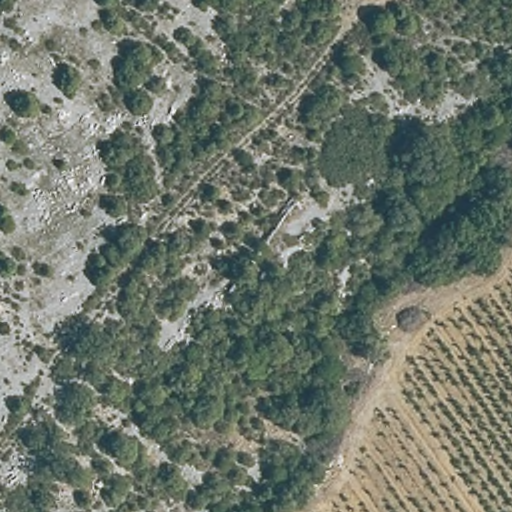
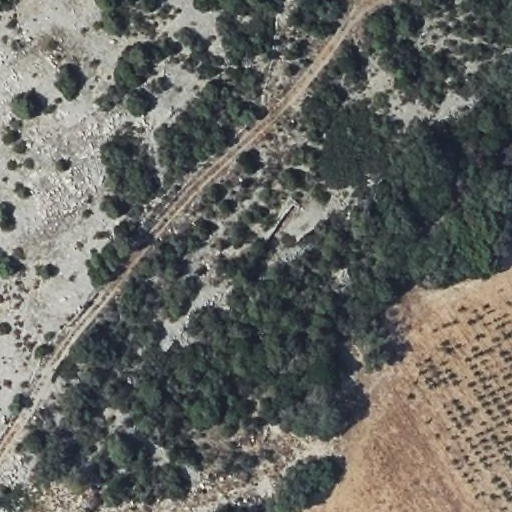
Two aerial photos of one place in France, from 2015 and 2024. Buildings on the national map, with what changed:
[]

